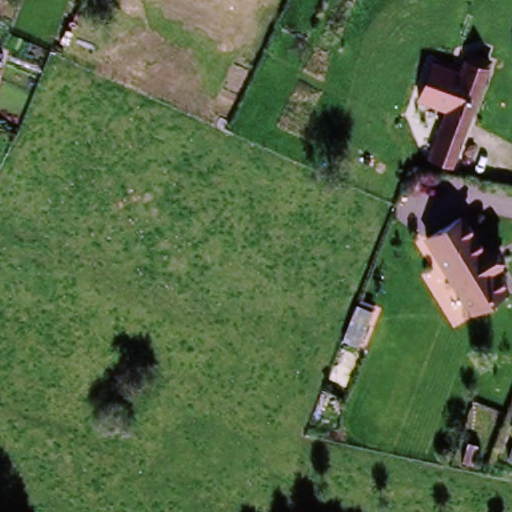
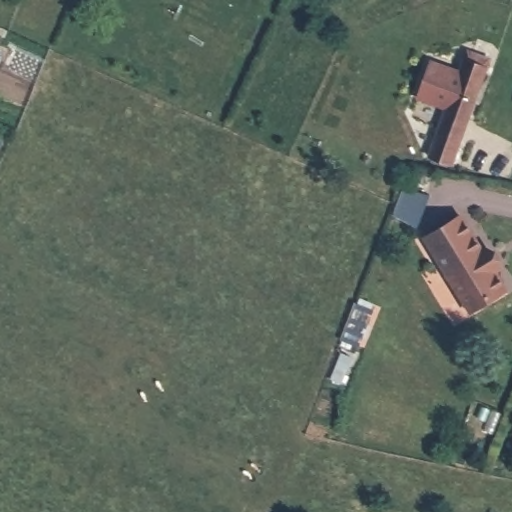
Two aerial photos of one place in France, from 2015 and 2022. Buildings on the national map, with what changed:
unchanged [(460,69),(466,49),(490,57),(453,166),(427,157),(442,110),(415,101),(430,60),(460,69)]
unchanged [(506,289),(470,308),(428,230),(465,211),(485,246),(489,245),(500,267),(496,270),(506,289)]

